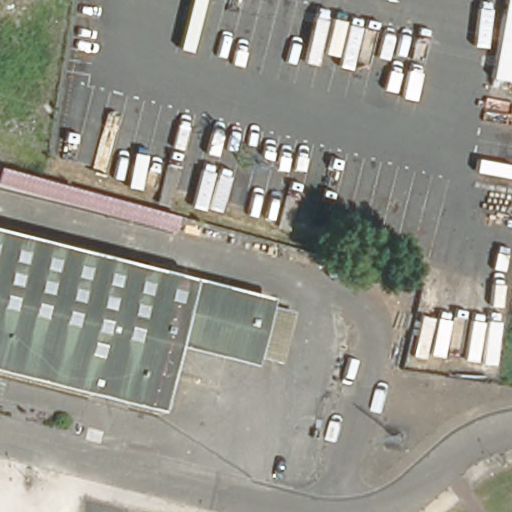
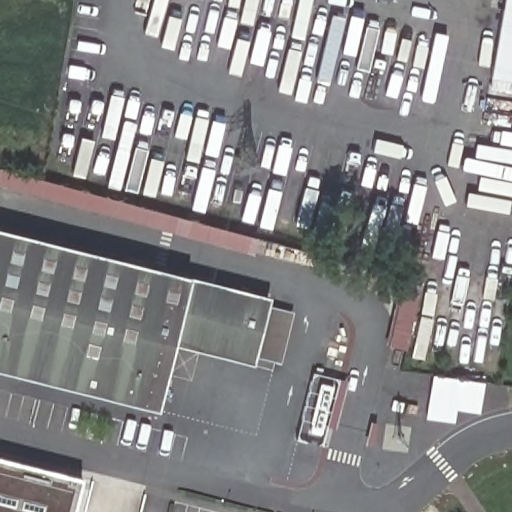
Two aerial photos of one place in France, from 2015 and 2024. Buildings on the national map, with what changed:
unchanged [(487,79),(503,0),(512,0),(512,83),(487,79)]
unchanged [(154,412),(0,374),(0,249),(263,315),(250,366),(170,347),(154,412)]
new [(376,295),(380,277),(422,286),(406,350),(388,346),(398,300),(376,295)]
new [(432,375),(484,382),(479,413),(455,410),(453,423),(425,420),(432,375)]
new [(73,512),(0,512),(0,458),(82,478),(73,512)]

